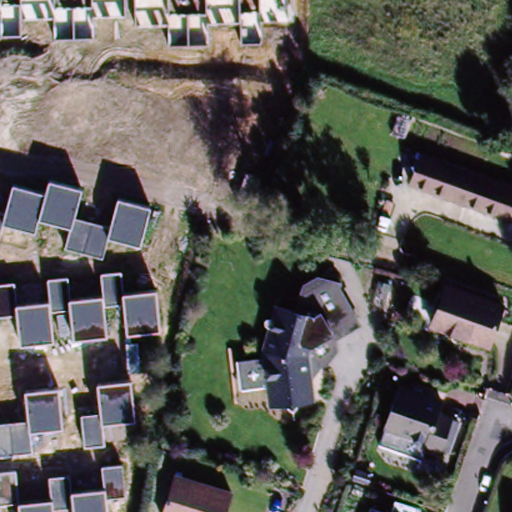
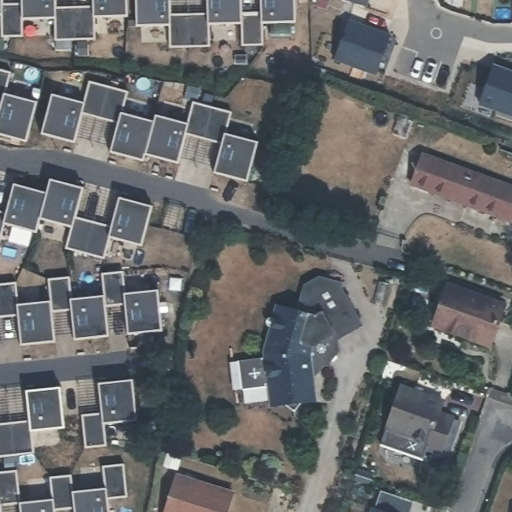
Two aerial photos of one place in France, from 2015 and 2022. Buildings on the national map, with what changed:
unchanged [(20,3),(20,0),(55,0),(55,6),(91,6),(91,0),(126,0),(126,15),(93,16),(94,37),(53,37),(53,17),(21,18),(21,34),(0,35),(0,13),(0,4),(20,3)]
unchanged [(206,13),(206,0),(239,0),(239,14),(260,12),(260,0),(293,0),(294,21),(260,22),(261,44),(240,44),(240,23),(206,24),(206,45),(169,46),(169,25),(136,27),(135,0),(168,0),(169,15),(206,13)]
new [(332,58),(348,21),(388,36),(374,76),(332,58)]
new [(490,67),(512,75),(512,120),(476,106),(490,67)]
new [(10,74),(4,95),(35,104),(24,141),(0,134),(0,71),(10,74)]
new [(51,95),(84,105),(91,82),(127,93),(121,113),(154,125),(155,116),(186,125),(194,103),(230,114),(225,136),(257,144),(245,182),(214,172),(216,163),(197,161),(203,139),(185,134),(177,163),(145,154),(143,161),(110,153),(117,124),(82,113),(73,143),(42,134),(51,95)]
unchanged [(413,126),(407,141),(394,136),(400,121),(413,126)]
unchanged [(512,189),(512,215),(510,222),(411,187),(422,156),(512,189)]
unchanged [(3,213),(12,184),(44,193),(50,179),(82,189),(76,218),(110,226),(119,198),(149,205),(140,245),(108,239),(104,258),(65,249),(70,230),(39,220),(36,232),(2,224),(0,233),(0,212),(3,213)]
unchanged [(127,336),(121,304),(106,306),(107,337),(74,341),(70,310),(52,312),(54,342),(20,345),(16,316),(0,317),(0,285),(15,283),(17,305),(48,302),(47,281),(69,278),(70,299),(102,295),(100,274),(121,272),(124,293),(155,290),(160,331),(127,336)]
unchanged [(237,360),(262,357),(260,350),(275,303),(288,308),(296,303),(300,291),(310,294),(332,281),(335,276),(343,279),(342,283),(361,316),(312,345),(308,355),(313,393),(311,394),(306,397),(306,399),(300,400),(291,410),(281,402),(271,403),(270,399),(266,398),(265,383),(240,385),(237,360)]
unchanged [(372,286),(385,290),(379,309),(366,305),(372,286)]
unchanged [(449,290),(504,307),(492,345),(436,327),(449,290)]
unchanged [(97,384),(131,380),(135,420),(103,426),(105,447),(85,449),(81,415),(99,414),(97,384)]
unchanged [(26,422),(25,392),(59,388),(63,429),(31,434),(32,452),(0,456),(0,424),(26,422)]
unchanged [(398,390),(440,404),(437,417),(455,423),(443,457),(425,451),(430,439),(386,424),(398,390)]
unchanged [(15,471),(19,503),(51,500),(49,477),(70,475),(71,492),(104,489),(101,468),(122,465),(125,496),(107,499),(109,512),(72,512),(71,508),(55,510),(55,512),(19,512),(17,504),(1,505),(1,512),(0,512),(0,473),(15,471)]
unchanged [(227,494),(221,512),(159,512),(170,476),(227,494)]
unchanged [(375,507),(390,512),(372,512),(375,507)]

